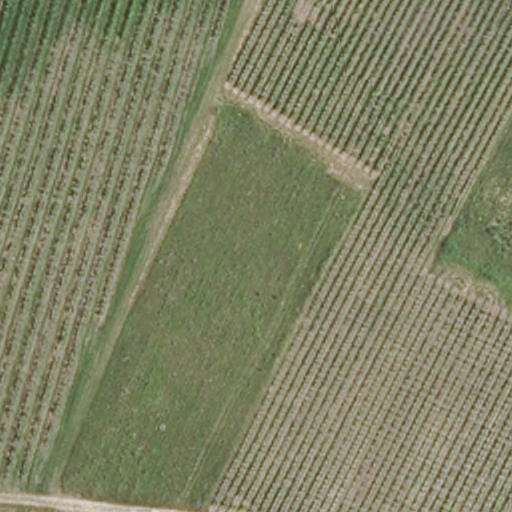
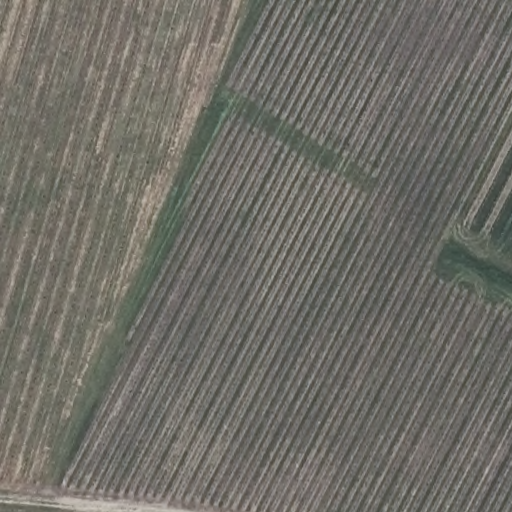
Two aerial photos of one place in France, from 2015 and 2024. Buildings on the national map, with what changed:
[]

